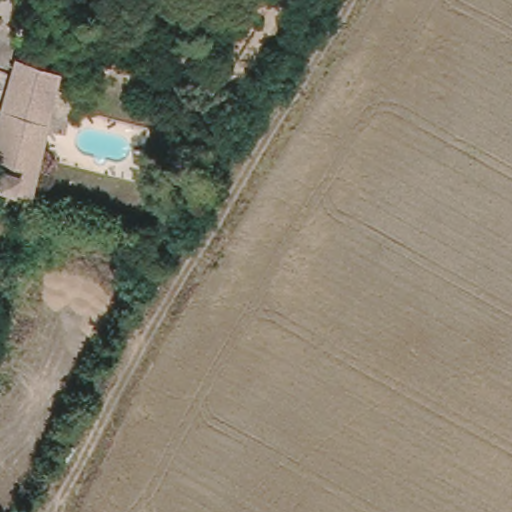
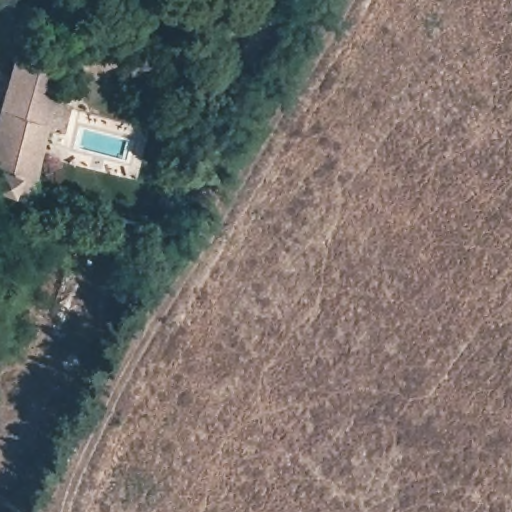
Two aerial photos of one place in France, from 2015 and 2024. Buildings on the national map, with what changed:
unchanged [(3,108),(20,54),(62,67),(50,124),(3,108)]
unchanged [(0,150),(0,119),(3,108),(50,124),(39,165),(0,150)]
unchanged [(34,190),(15,183),(6,206),(0,203),(0,150),(39,165),(34,190)]

